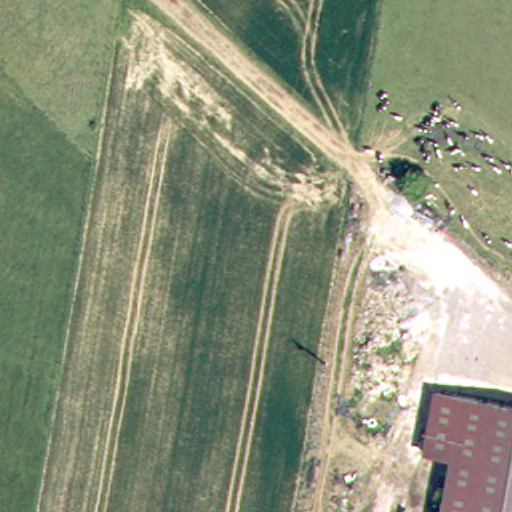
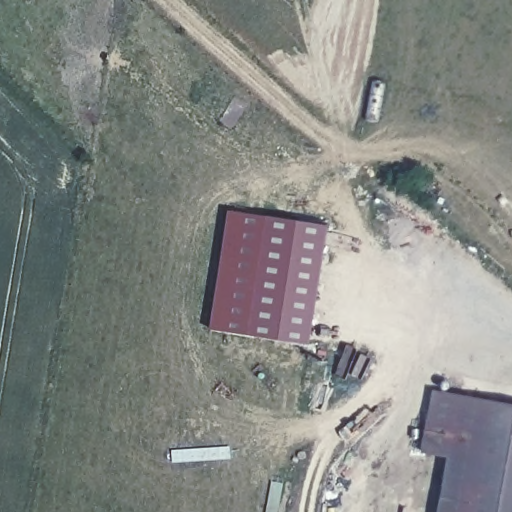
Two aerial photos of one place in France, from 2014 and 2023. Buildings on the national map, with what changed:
new [(212,330),(231,212),(268,219),(330,226),(312,346),(250,335),(212,330)]
unchanged [(450,450),(424,445),(436,388),(512,402),(512,512),(438,512),(450,450)]

